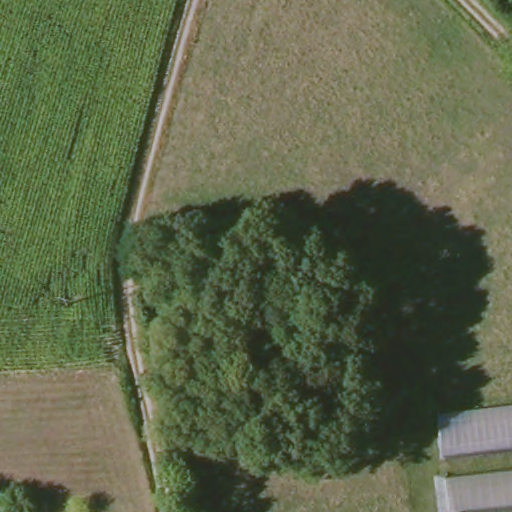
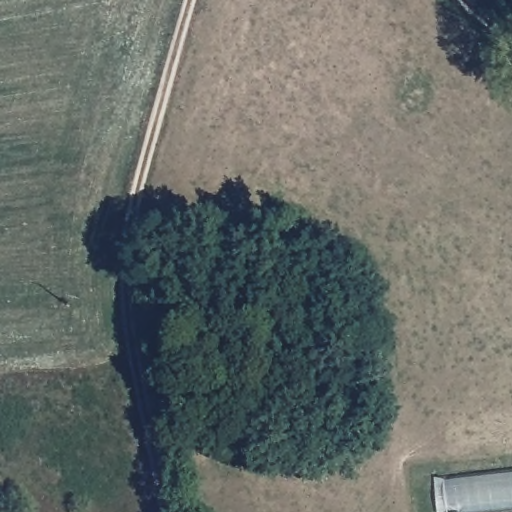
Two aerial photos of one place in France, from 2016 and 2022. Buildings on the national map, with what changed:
demolished [(437,455),(432,414),(512,405),(512,447),(437,455)]
unchanged [(443,512),(439,476),(512,468),(512,505),(447,512),(443,512)]

